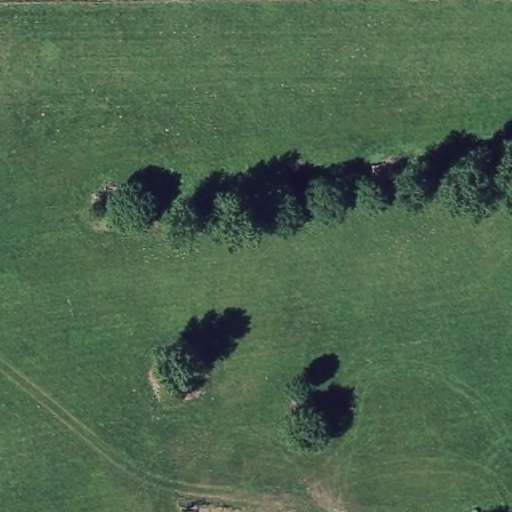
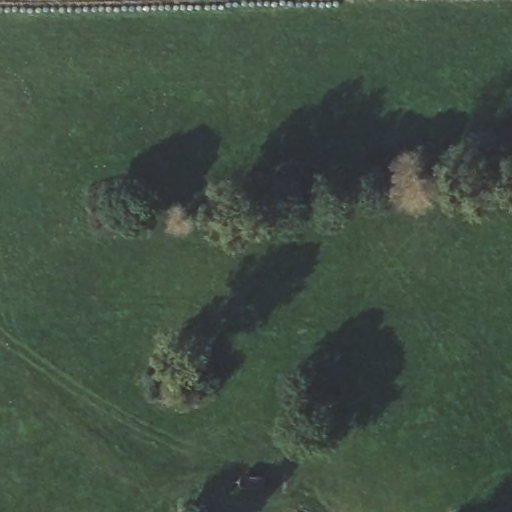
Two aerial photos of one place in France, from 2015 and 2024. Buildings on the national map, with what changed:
[]

